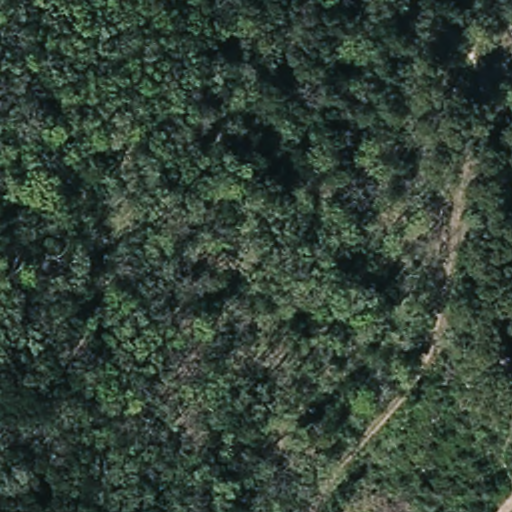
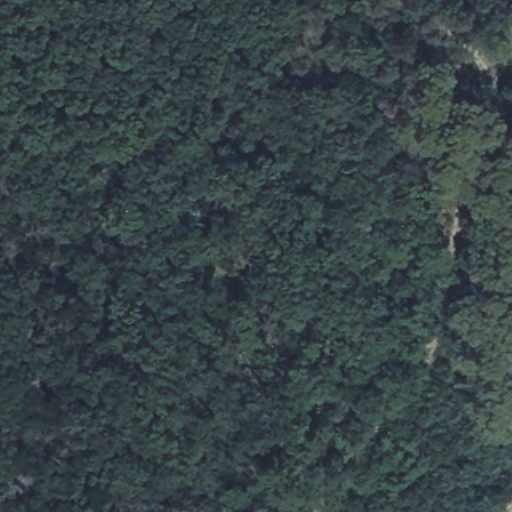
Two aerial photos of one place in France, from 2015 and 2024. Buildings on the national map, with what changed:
[]

